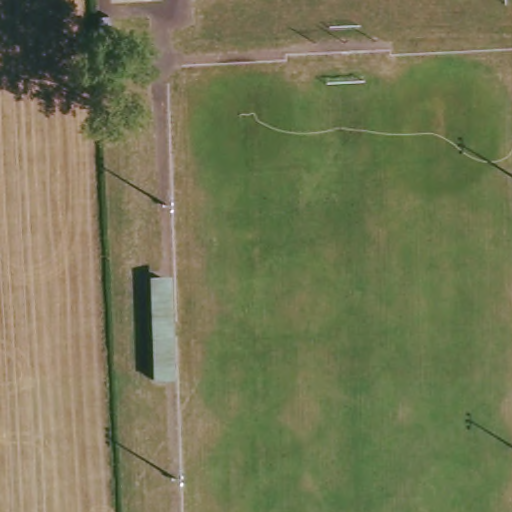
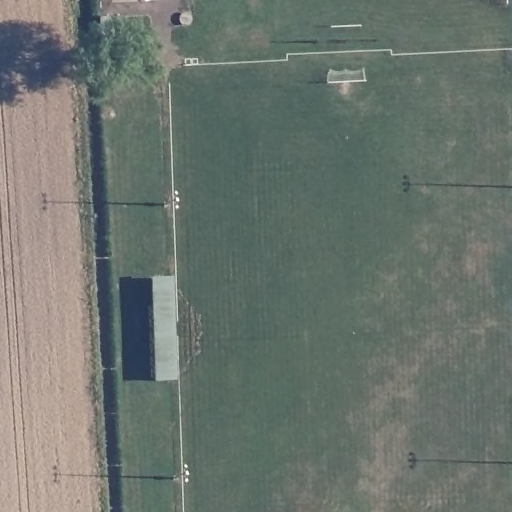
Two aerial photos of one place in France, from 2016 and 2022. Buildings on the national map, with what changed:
unchanged [(162,277),(167,379),(155,380),(150,277),(162,277)]

